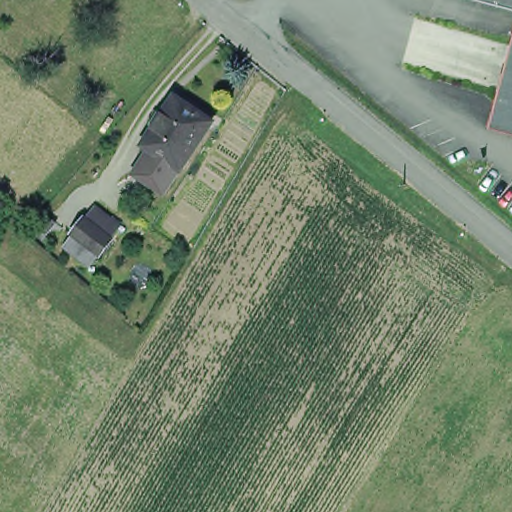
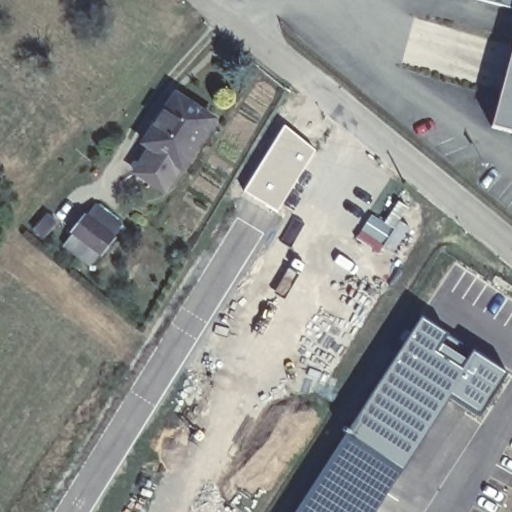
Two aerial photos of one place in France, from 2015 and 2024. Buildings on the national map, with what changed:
unchanged [(512,0),(512,3),(501,0),(512,0)]
unchanged [(512,39),(512,127),(490,121),(512,39)]
unchanged [(147,152),(152,145),(142,138),(173,90),(211,114),(178,164),(177,162),(172,169),(147,152)]
unchanged [(67,235),(77,224),(90,207),(97,199),(122,217),(115,227),(102,244),(92,255),(67,235)]
unchanged [(45,216),(53,223),(41,236),(33,230),(45,216)]
new [(342,435),(420,317),(448,335),(443,341),(466,358),(472,350),(507,374),(478,417),(450,398),(388,495),(377,512),(292,512),(342,435)]

